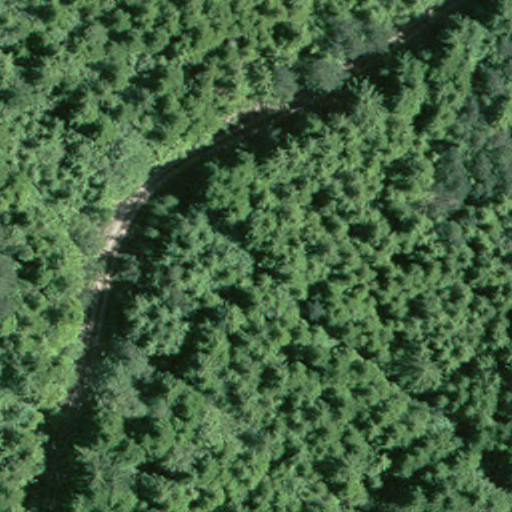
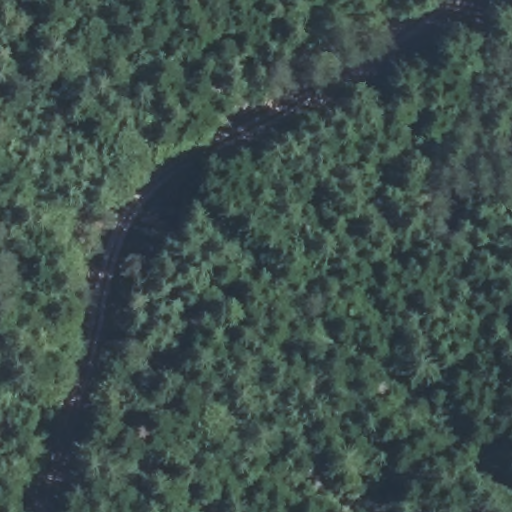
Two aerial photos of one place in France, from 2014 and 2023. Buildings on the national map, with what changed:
[]

